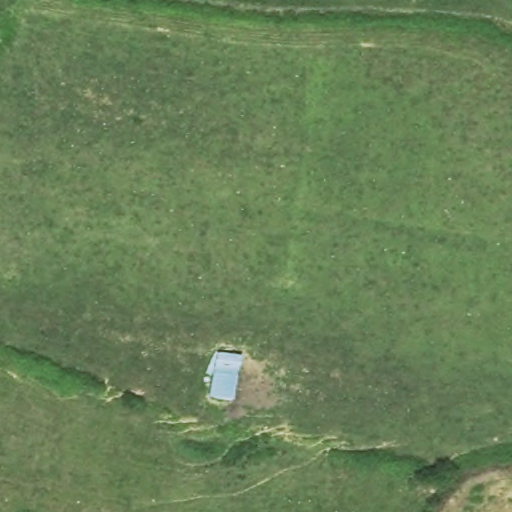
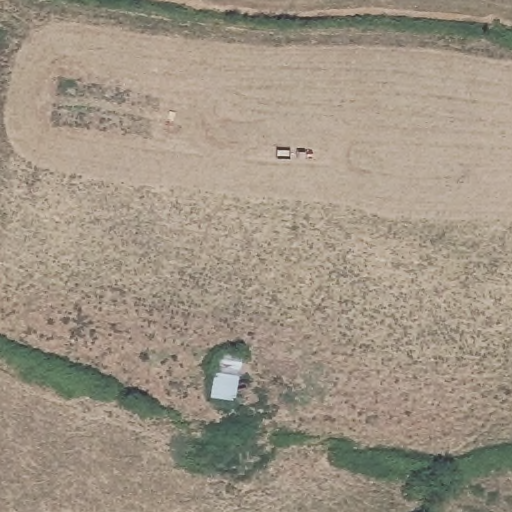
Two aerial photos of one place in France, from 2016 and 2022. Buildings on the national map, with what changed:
unchanged [(234,402),(209,399),(215,370),(242,373),(234,402)]

